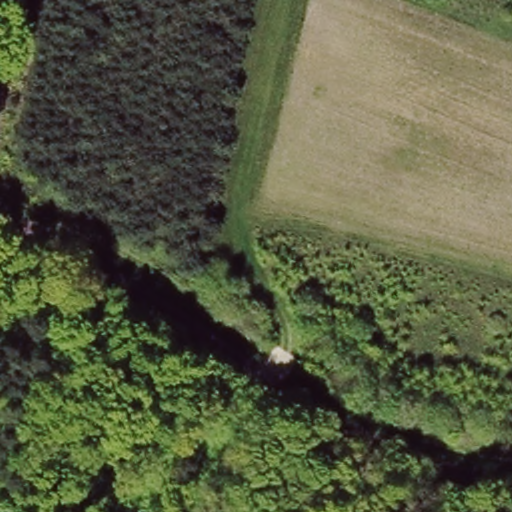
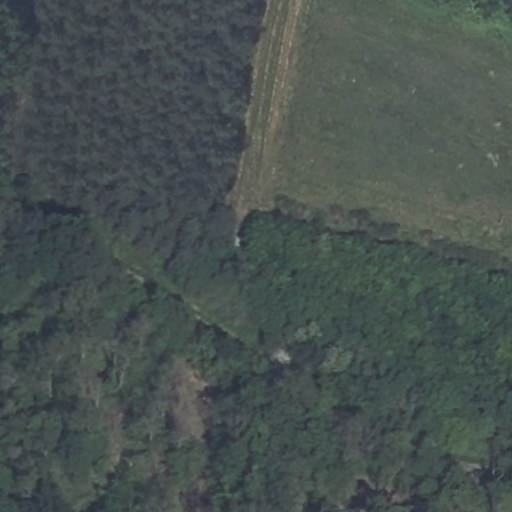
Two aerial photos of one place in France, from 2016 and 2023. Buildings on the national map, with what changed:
[]

